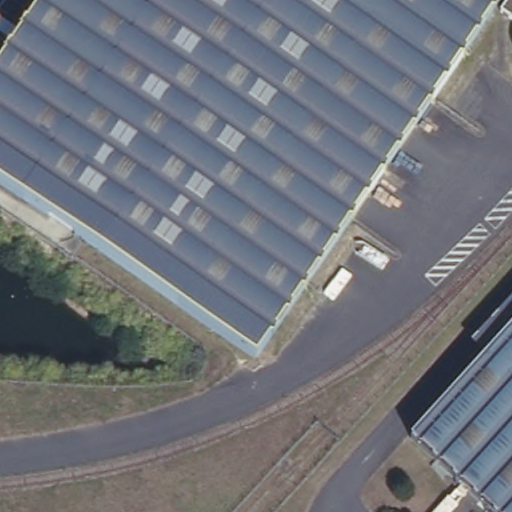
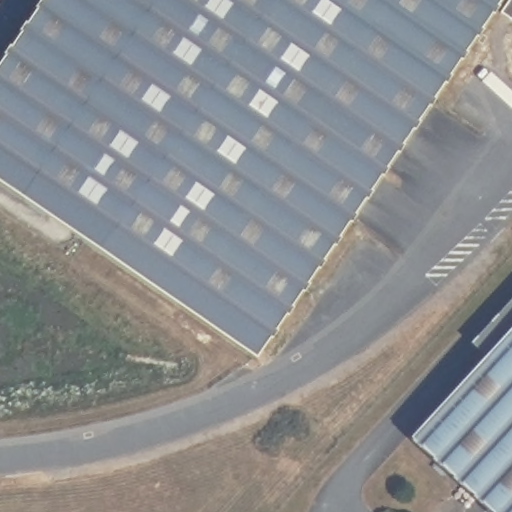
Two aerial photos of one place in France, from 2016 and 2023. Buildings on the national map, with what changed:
unchanged [(0,189),(0,66),(45,0),(501,0),(256,362),(0,189)]
unchanged [(510,0),(512,0),(512,27),(497,18),(510,0)]
unchanged [(469,340),(512,294),(512,323),(484,353),(469,340)]
unchanged [(512,323),(512,512),(494,512),(410,434),(484,353),(512,323)]

